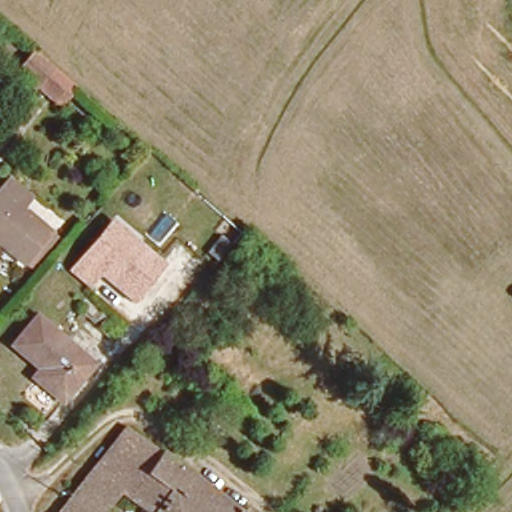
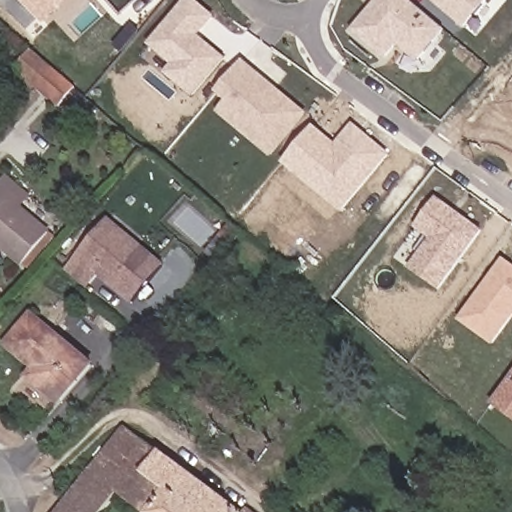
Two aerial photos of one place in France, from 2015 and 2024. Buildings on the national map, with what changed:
new [(23,0),(72,0),(46,24),(23,0)]
new [(226,59),(206,83),(153,39),(185,0),(194,0),(214,19),(200,37),(226,59)]
new [(397,45),(380,62),(348,35),(377,0),(408,0),(444,32),(417,64),(397,45)]
new [(465,29),(430,0),(489,0),(479,12),(465,29)]
unchanged [(62,99),(40,79),(39,80),(19,63),(34,45),(36,43),(56,60),(79,80),(62,99)]
new [(270,159),(216,113),(225,102),(216,94),(243,61),(308,114),(270,159)]
new [(283,164),(314,127),(335,144),(353,124),(390,155),(341,213),(283,164)]
unchanged [(7,175),(29,196),(20,206),(48,233),(23,260),(0,239),(0,182),(7,175)]
new [(440,291),(409,268),(429,240),(414,229),(437,198),(483,231),(440,291)]
unchanged [(133,305),(100,279),(89,290),(66,272),(112,219),(165,265),(133,305)]
new [(502,258),(512,265),(512,321),(491,346),(457,322),(502,258)]
unchanged [(92,360),(59,398),(29,371),(34,365),(8,342),(35,311),(92,360)]
new [(512,421),(491,407),(512,378),(512,421)]
unchanged [(241,512),(56,512),(131,425),(241,512)]

